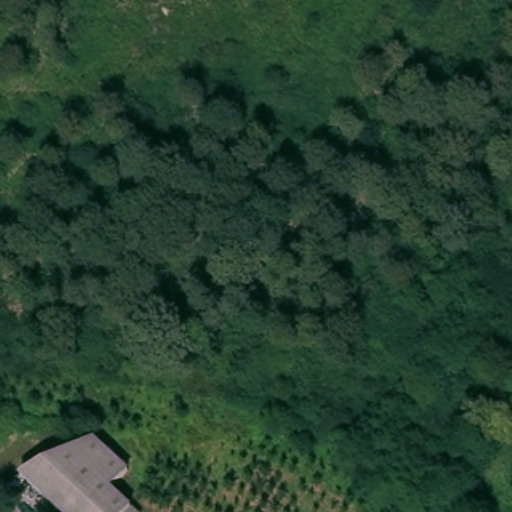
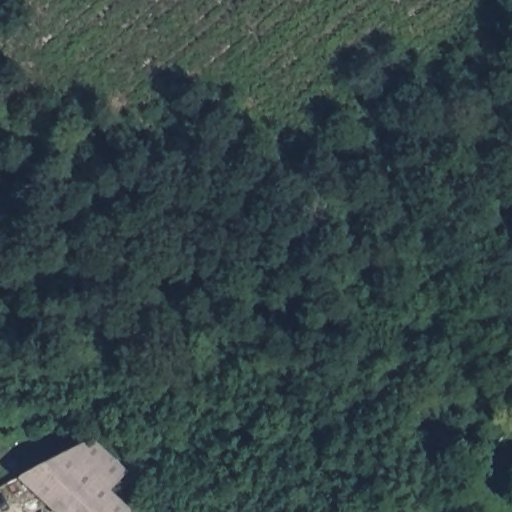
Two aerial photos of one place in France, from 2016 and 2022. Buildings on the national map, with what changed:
unchanged [(126,466),(122,477),(116,490),(112,500),(132,510),(129,512),(61,512),(25,480),(97,440),(126,466)]

